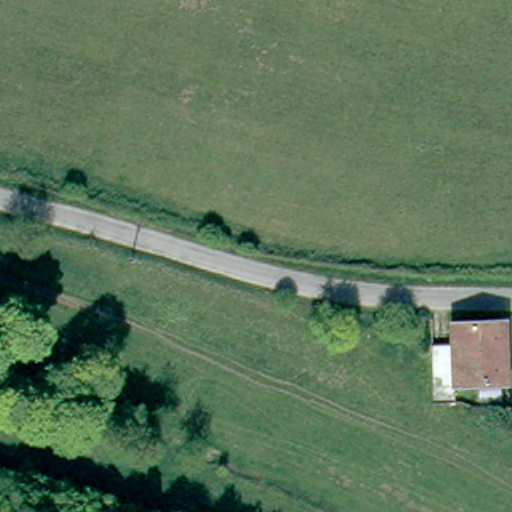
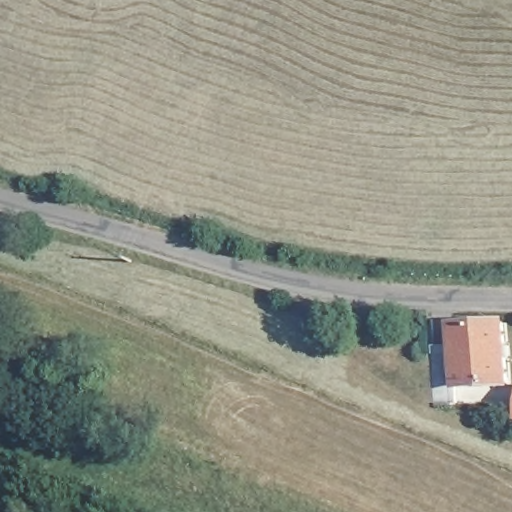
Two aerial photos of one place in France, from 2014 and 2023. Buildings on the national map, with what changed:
unchanged [(451,322),(505,320),(507,381),(455,381),(451,322)]

